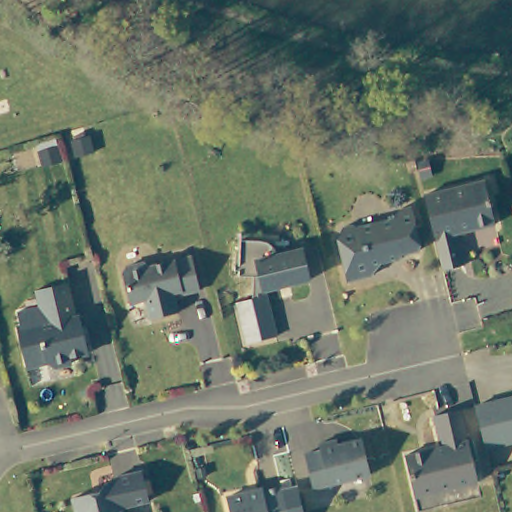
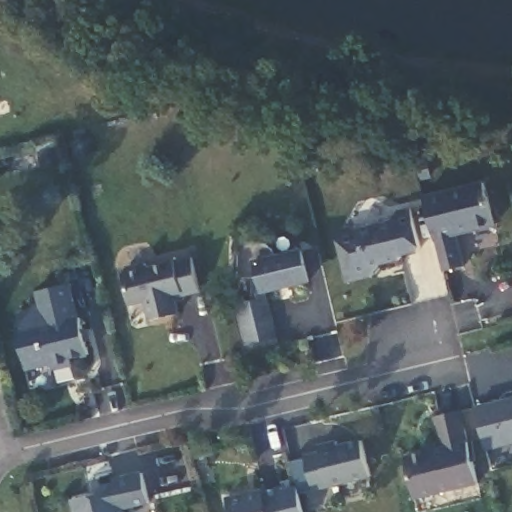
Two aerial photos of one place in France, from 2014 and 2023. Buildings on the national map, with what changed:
unchanged [(491,181),(502,225),(463,235),(471,266),(450,271),(432,196),(491,181)]
unchanged [(397,222),(401,212),(415,209),(423,248),(421,253),(404,257),(402,262),(375,268),(376,275),(374,279),(350,284),(340,242),(347,230),(358,228),(360,230),(397,222)]
unchanged [(243,242),(264,243),(268,244),(272,246),(275,249),(276,250),(280,257),(305,251),(312,282),(268,292),(280,338),(250,345),(240,304),(255,301),(257,278),(242,277),(243,242)]
unchanged [(130,269),(149,265),(155,268),(196,258),(204,292),(186,296),(186,293),(177,295),(182,314),(154,321),(150,302),(134,306),(126,275),(130,269)]
unchanged [(94,355),(75,360),(76,365),(59,370),(51,365),(31,369),(21,330),(25,329),(21,314),(44,309),(43,308),(40,293),(74,285),(77,300),(82,319),(85,319),(94,355)]
unchanged [(512,399),(512,443),(489,449),(479,407),(512,399)]
unchanged [(464,406),(482,478),(420,494),(410,453),(445,444),(437,412),(464,406)]
unchanged [(322,451),(320,445),(340,440),(340,445),(365,439),(373,475),(317,490),(308,455),(322,451)]
unchanged [(104,494),(109,486),(119,483),(117,480),(146,474),(153,504),(126,510),(127,512),(79,512),(76,500),(104,494)]
unchanged [(251,493),(252,495),(286,486),(293,512),(235,512),(231,498),(251,493)]

